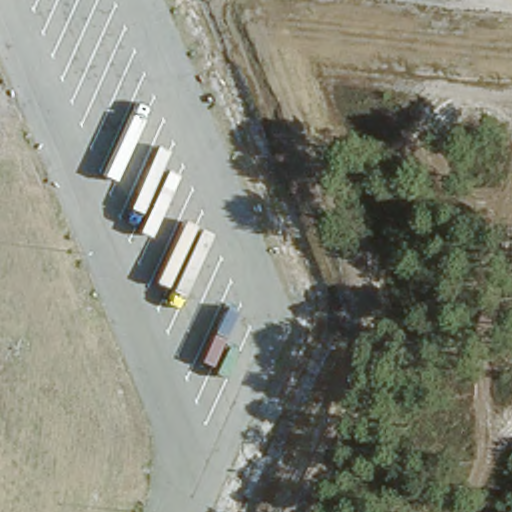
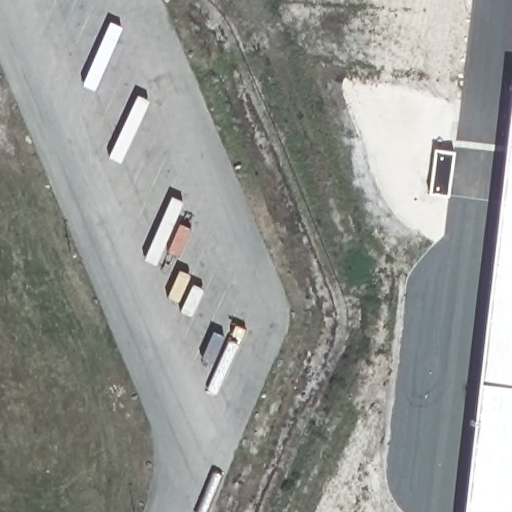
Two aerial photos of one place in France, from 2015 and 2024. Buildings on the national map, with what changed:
new [(464,512),(512,82),(512,512),(464,512)]

